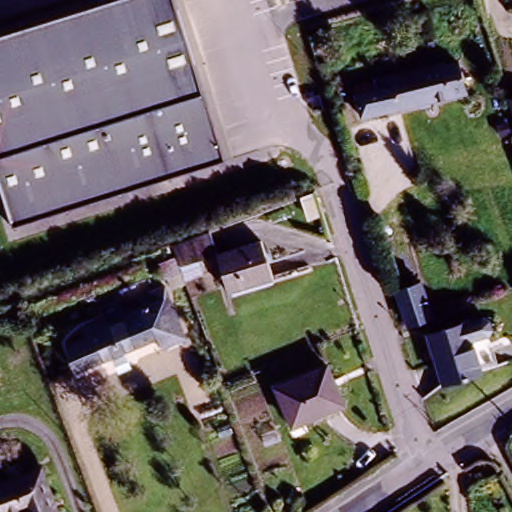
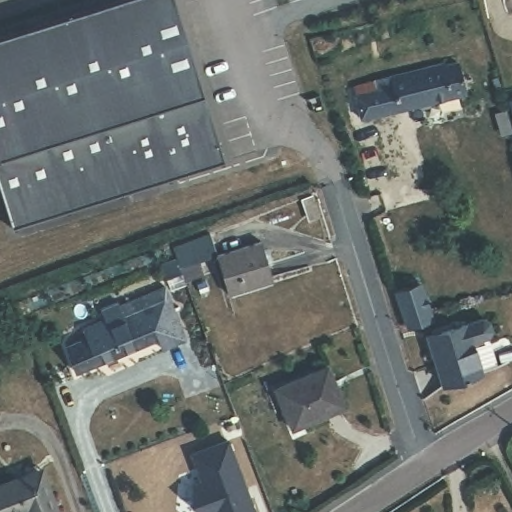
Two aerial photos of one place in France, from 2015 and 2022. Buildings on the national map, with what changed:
unchanged [(169,0),(219,161),(6,228),(0,208),(0,31),(101,0),(169,0)]
unchanged [(471,40),(478,67),(467,70),(461,43),(471,40)]
unchanged [(464,94),(360,115),(355,93),(354,85),(366,82),(458,63),(464,94)]
unchanged [(210,261),(260,244),(270,274),(220,290),(210,261)]
unchanged [(436,316),(412,323),(401,291),(400,285),(408,282),(410,288),(425,283),(436,316)]
unchanged [(99,337),(94,324),(174,293),(192,340),(167,350),(162,338),(74,373),(64,350),(99,337)]
unchanged [(425,336),(472,322),(481,325),(482,334),(480,336),(488,369),(438,384),(425,336)]
unchanged [(286,386),(332,370),(345,407),(299,422),(286,386)]
new [(255,512),(198,512),(191,505),(193,486),(202,483),(192,455),(230,441),(255,512)]
unchanged [(58,512),(26,512),(25,510),(18,512),(0,512),(0,480),(40,466),(58,512)]

